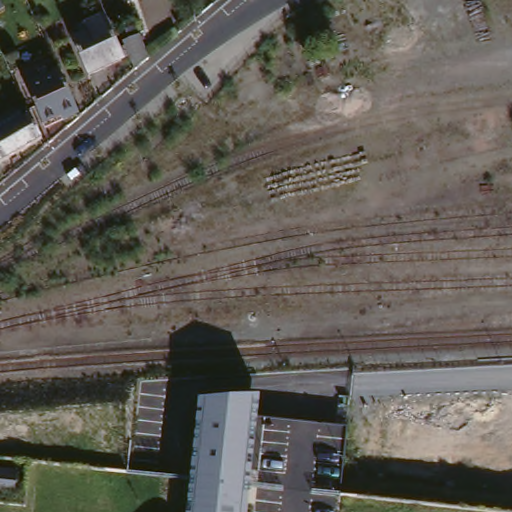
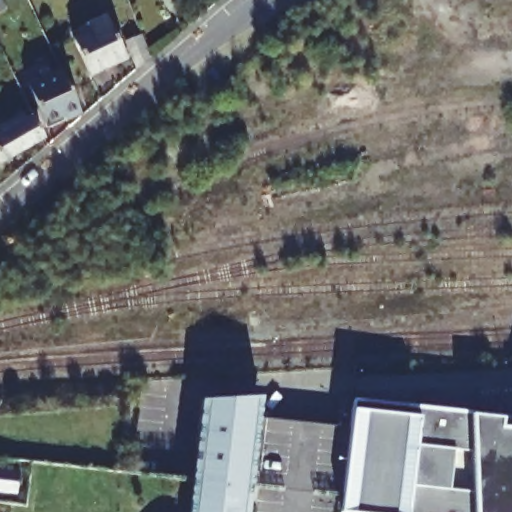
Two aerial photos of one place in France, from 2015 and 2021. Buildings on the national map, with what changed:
unchanged [(124,55),(87,74),(69,37),(72,36),(69,30),(104,11),(124,55)]
unchanged [(146,59),(133,70),(122,39),(137,32),(146,59)]
unchanged [(77,113),(60,121),(58,117),(42,124),(30,99),(63,81),(77,113)]
unchanged [(26,109),(38,134),(40,138),(0,161),(0,131),(5,128),(1,120),(20,110),(21,112),(26,109)]
unchanged [(248,512),(188,512),(192,474),(200,399),(261,395),(248,512)]
new [(340,511),(351,410),(353,398),(468,415),(498,419),(512,420),(512,512),(344,512),(340,511)]
unchanged [(10,476),(9,491),(0,490),(0,475),(10,476)]

